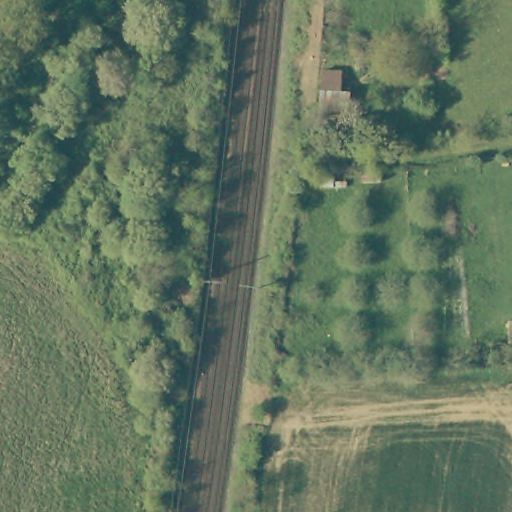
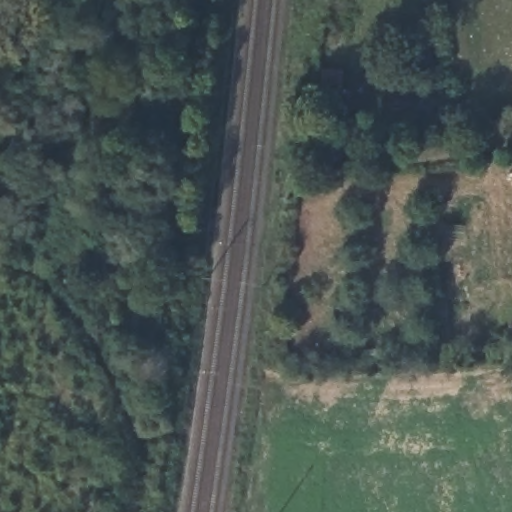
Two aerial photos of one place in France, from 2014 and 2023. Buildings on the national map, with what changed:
unchanged [(512,320),(512,354),(510,354),(510,320),(512,320)]

